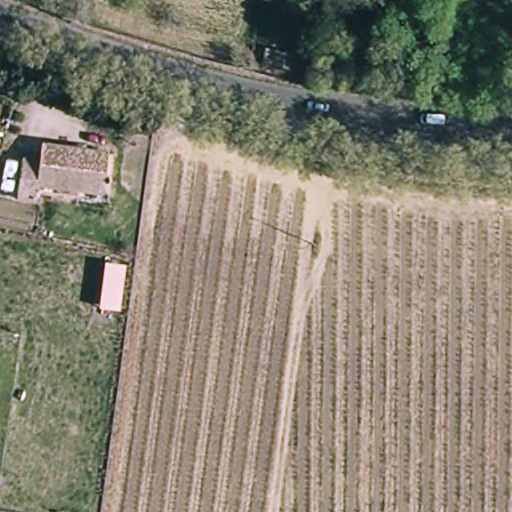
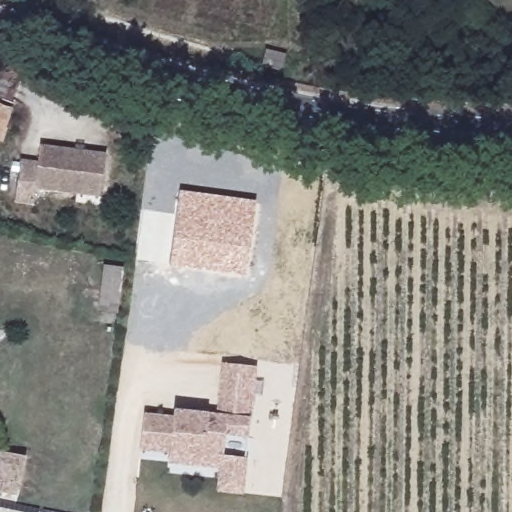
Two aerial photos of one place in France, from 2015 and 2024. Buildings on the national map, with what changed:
unchanged [(284,57),(281,73),(261,69),(264,53),(284,57)]
unchanged [(79,199),(37,192),(34,208),(15,204),(21,166),(38,168),(41,150),(108,161),(103,195),(101,202),(79,199)]
new [(245,276),(170,264),(179,190),(254,201),(245,276)]
unchanged [(103,264),(125,266),(120,311),(100,308),(103,264)]
new [(229,373),(260,378),(253,430),(221,425),(229,373)]
new [(147,421),(176,425),(177,419),(221,425),(253,430),(250,447),(228,443),(224,465),(223,470),(171,462),(171,459),(142,455),(147,421)]
new [(18,497),(0,493),(0,451),(26,456),(18,497)]
new [(171,462),(223,470),(224,465),(247,469),(241,503),(219,499),(223,477),(169,469),(171,462)]

